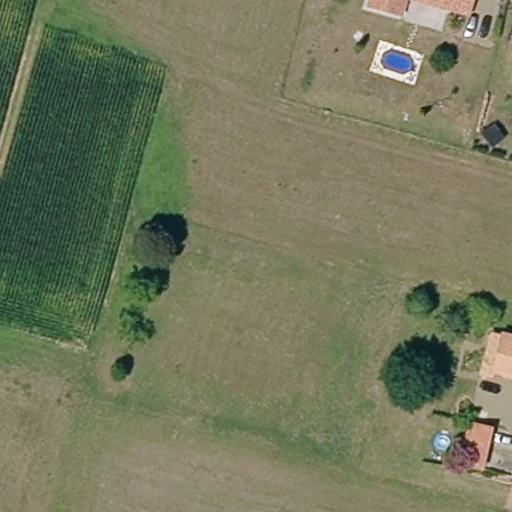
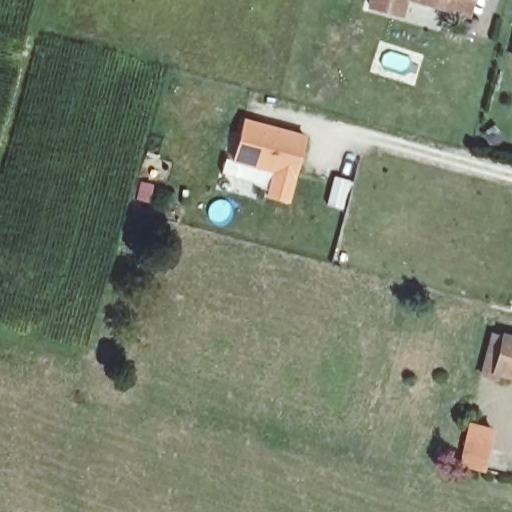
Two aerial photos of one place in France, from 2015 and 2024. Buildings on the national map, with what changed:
unchanged [(371,0),(403,0),(400,16),(368,9),(371,0)]
unchanged [(447,9),(412,0),(450,0),(470,0),(467,14),(447,9)]
new [(305,135),(295,177),(232,162),(243,117),(305,135)]
unchanged [(490,383),(477,378),(489,338),(501,341),(502,336),(512,339),(512,382),(492,376),(490,383)]
unchanged [(482,466),(465,461),(475,427),(490,432),(482,466)]

